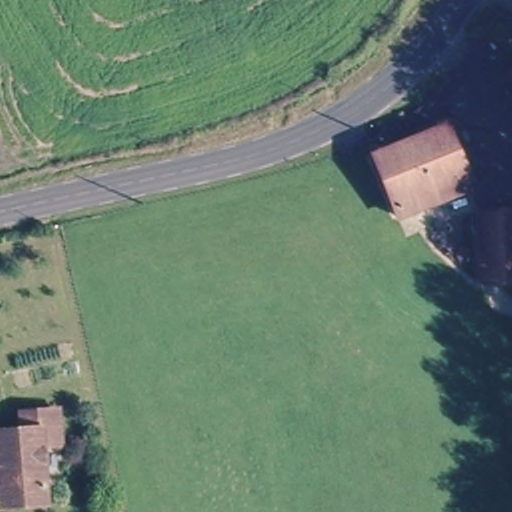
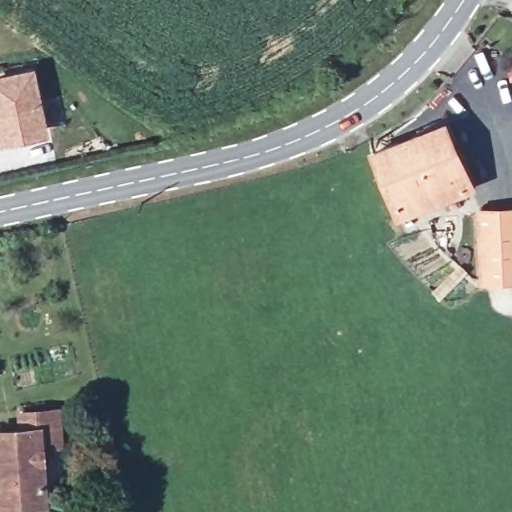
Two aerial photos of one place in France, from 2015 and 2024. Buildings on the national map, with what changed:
new [(37,66),(52,136),(0,147),(0,75),(37,66)]
unchanged [(451,127),(472,194),(396,215),(379,150),(451,127)]
unchanged [(512,211),(512,282),(482,282),(482,211),(512,211)]
unchanged [(18,433),(16,418),(55,415),(60,450),(35,452),(41,492),(44,506),(0,509),(0,435),(18,433)]

